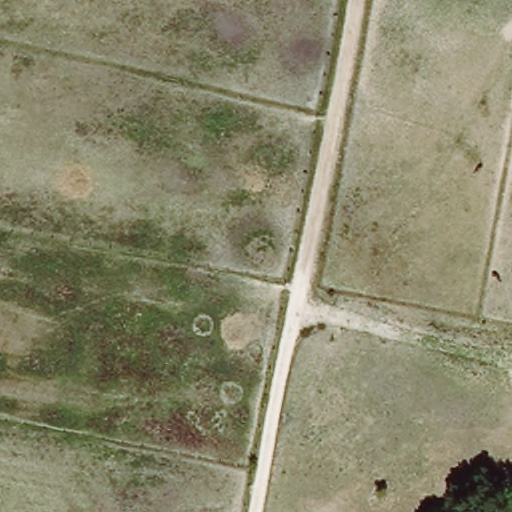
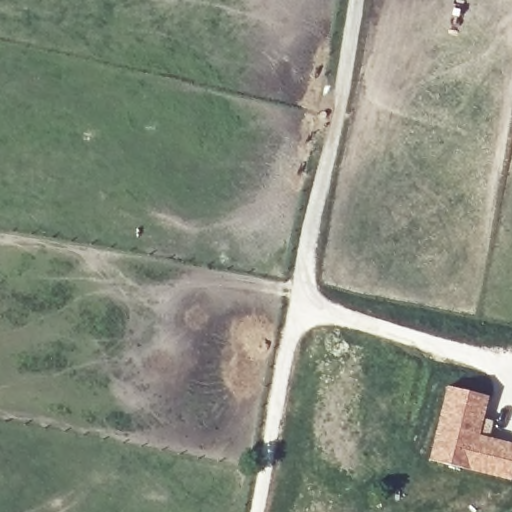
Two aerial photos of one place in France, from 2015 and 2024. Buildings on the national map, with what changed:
new [(488,396),(483,419),(493,421),(490,436),(512,442),(512,480),(512,482),(427,461),(445,385),(488,396)]

